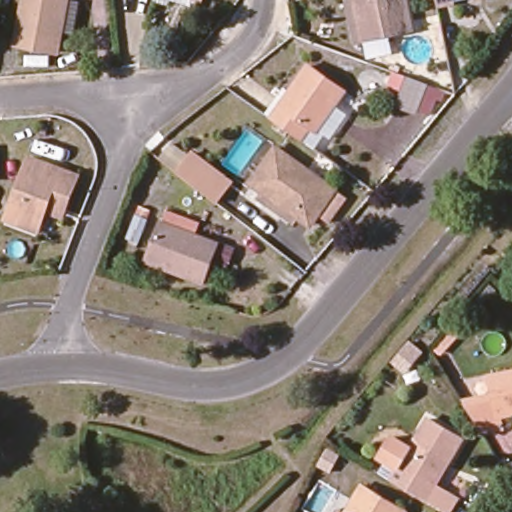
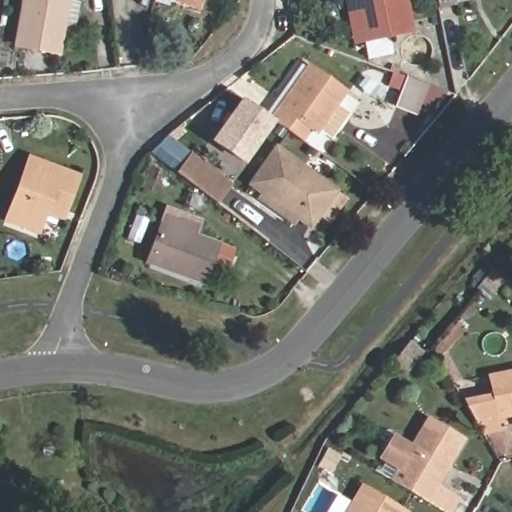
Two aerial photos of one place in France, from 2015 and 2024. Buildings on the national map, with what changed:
unchanged [(14,45),(22,0),(72,0),(80,1),(73,35),(60,33),(57,52),(14,45)]
unchanged [(185,0),(198,0),(196,4),(185,0)]
unchanged [(361,40),(353,0),(404,0),(410,30),(361,40)]
unchanged [(435,0),(443,0),(435,1),(435,0)]
unchanged [(270,119),(308,67),(342,91),(305,144),(270,119)]
unchanged [(439,101),(435,101),(430,117),(394,105),(398,89),(392,86),(397,76),(440,92),(439,101)]
new [(244,166),(214,145),(244,101),(275,123),(244,166)]
unchanged [(274,147),(334,190),(345,197),(327,222),(317,215),(311,222),(298,213),(296,216),(249,185),(274,147)]
unchanged [(188,151),(229,181),(214,201),(174,171),(188,151)]
unchanged [(7,220),(30,160),(74,177),(62,209),(46,202),(35,231),(7,220)]
unchanged [(137,243),(125,238),(134,215),(147,220),(138,243),(137,243)]
unchanged [(161,223),(216,244),(201,282),(146,261),(161,223)]
unchanged [(435,347),(446,336),(454,344),(444,355),(435,347)]
unchanged [(396,384),(427,345),(432,353),(402,389),(396,384)]
unchanged [(489,371),(512,367),(512,410),(498,413),(500,423),(481,427),(464,400),(494,394),(489,371)]
unchanged [(384,458),(399,467),(427,420),(461,440),(434,485),(456,498),(448,512),(444,512),(391,481),(375,472),(384,458)]
unchanged [(362,487),(401,510),(400,512),(347,512),(362,487)]

